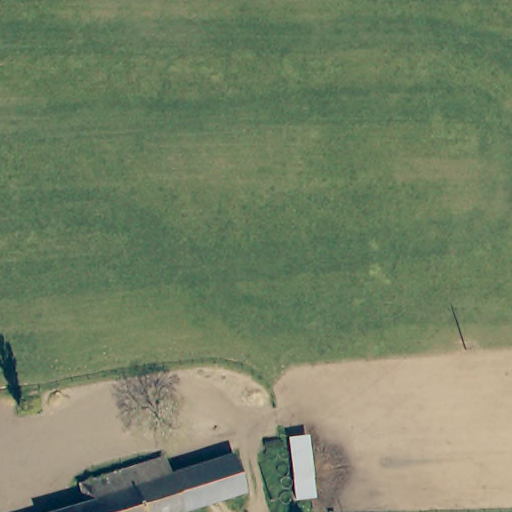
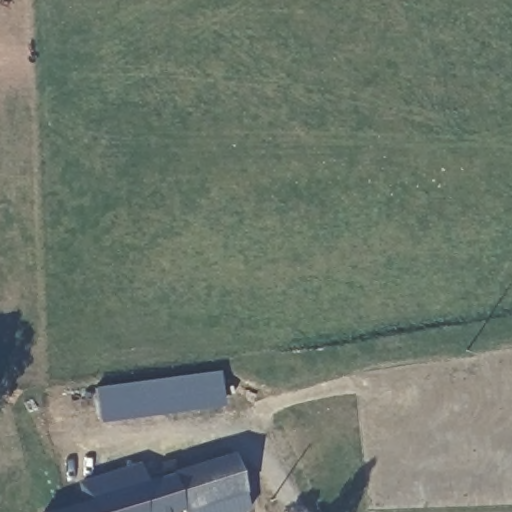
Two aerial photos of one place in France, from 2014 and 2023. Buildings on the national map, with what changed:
new [(225,405),(102,421),(95,385),(221,370),(225,405)]
demolished [(291,441),(311,437),(318,498),(298,501),(291,441)]
unchanged [(237,452),(237,454),(248,490),(187,510),(175,470),(237,452)]
unchanged [(180,512),(53,512),(89,501),(84,482),(151,460),(154,458),(170,453),(175,470),(187,510),(180,512)]

